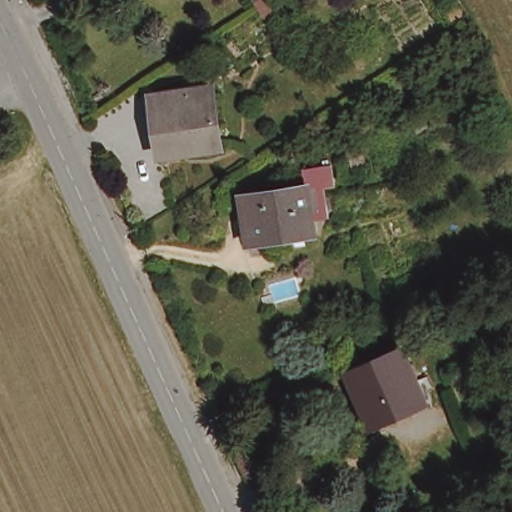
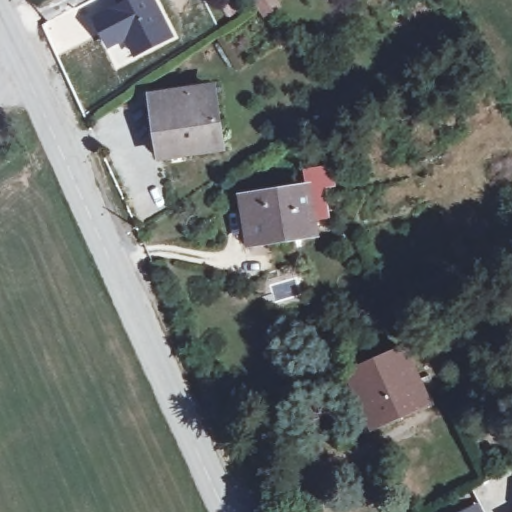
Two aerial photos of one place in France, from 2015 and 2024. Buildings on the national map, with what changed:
new [(99,0),(157,0),(176,36),(132,56),(123,41),(107,48),(88,13),(102,5),(99,0)]
unchanged [(253,0),(276,0),(279,5),(262,16),(253,0)]
unchanged [(225,146),(195,155),(192,145),(165,151),(152,103),(210,87),(225,146)]
unchanged [(295,188),(292,166),(326,160),(330,184),(316,186),(321,215),(301,219),(304,233),(245,245),(236,199),(295,188)]
unchanged [(403,349),(425,402),(371,424),(349,371),(403,349)]
new [(477,501),(483,512),(457,512),(477,501)]

